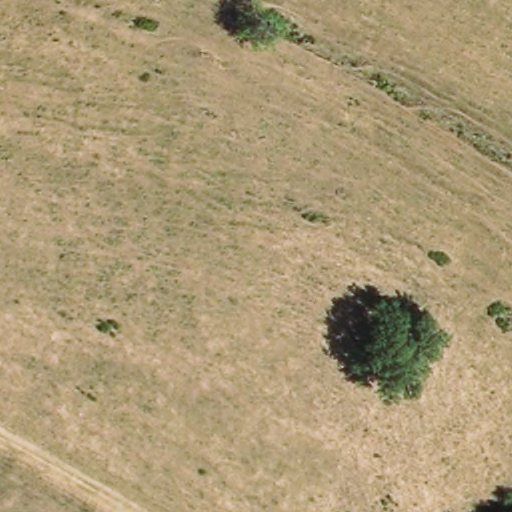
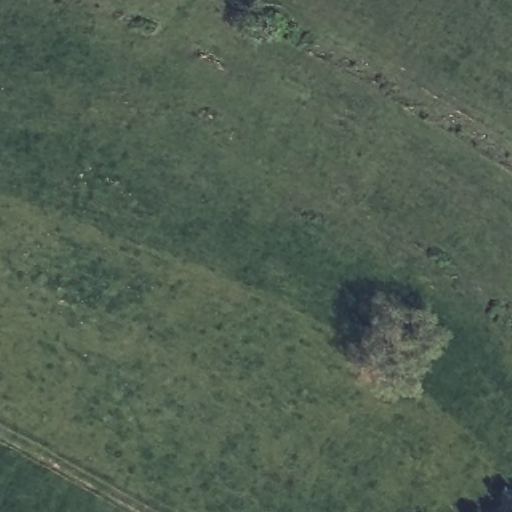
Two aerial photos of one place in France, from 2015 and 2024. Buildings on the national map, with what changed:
[]

